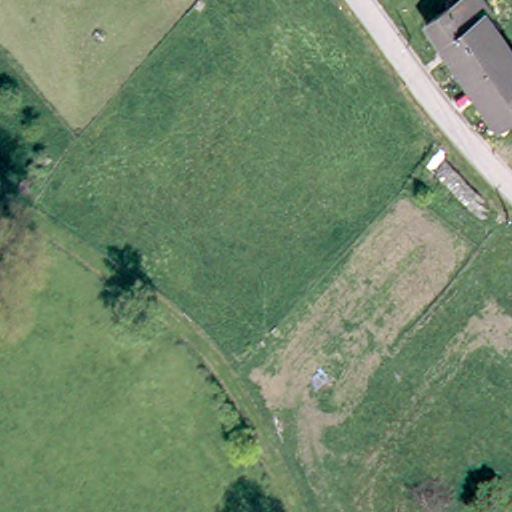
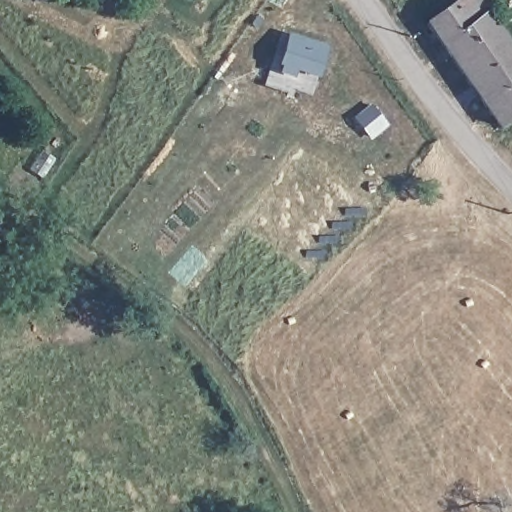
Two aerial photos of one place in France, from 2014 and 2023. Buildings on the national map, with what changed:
unchanged [(484,11),(504,39),(512,33),(512,109),(494,122),(421,19),(445,2),(447,0),(480,0),(487,9),(484,11)]
new [(286,32),(329,47),(319,80),(294,72),(292,78),(278,74),(279,67),(276,65),(286,32)]

